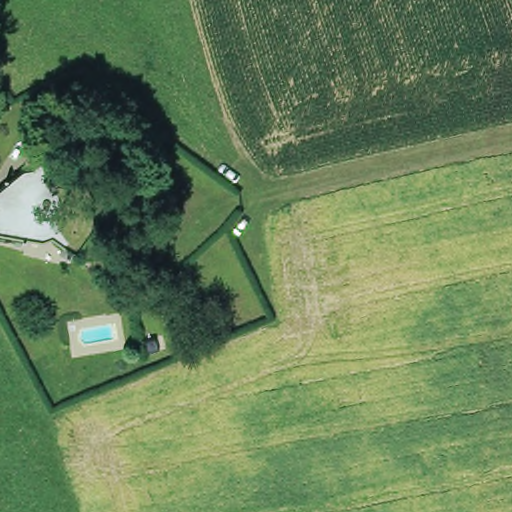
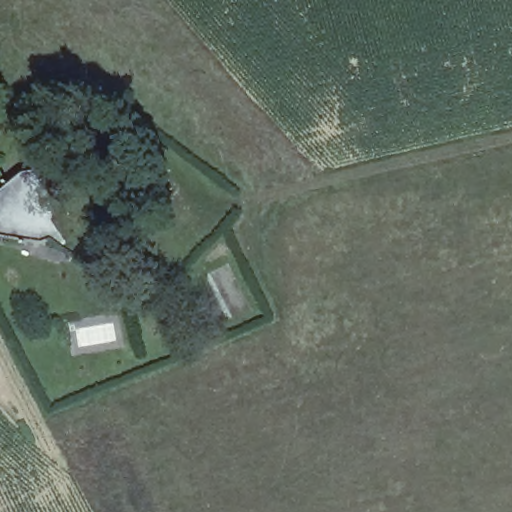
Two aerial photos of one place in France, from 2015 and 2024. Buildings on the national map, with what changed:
unchanged [(0,235),(0,186),(32,169),(49,150),(82,167),(95,195),(100,234),(93,269),(52,238),(0,235)]

